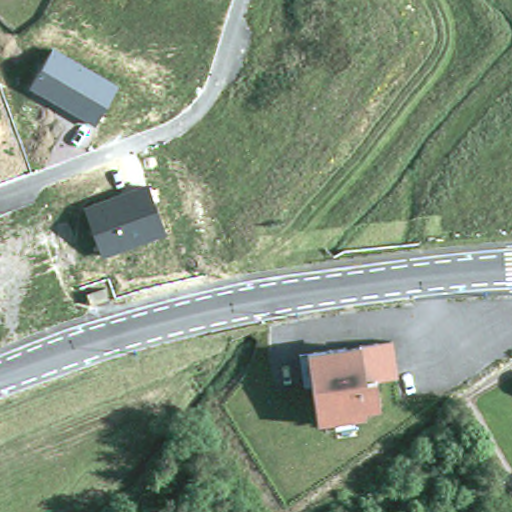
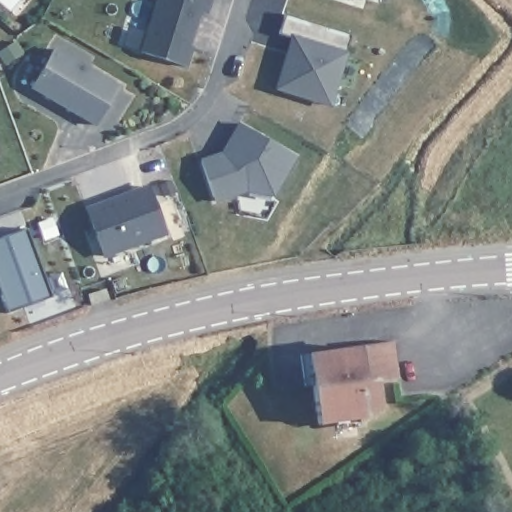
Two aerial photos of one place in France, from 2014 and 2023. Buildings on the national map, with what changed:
new [(192,45),(193,46),(188,66),(142,52),(157,0),(211,0),(207,14),(200,11),(192,45)]
new [(280,34),(285,16),(352,36),(348,52),(332,108),(275,90),(290,37),(280,34)]
unchanged [(118,84),(95,126),(28,88),(52,47),(118,84)]
new [(298,156),(273,198),(248,192),(216,204),(200,160),(222,153),(237,123),(298,156)]
unchanged [(147,183),(167,234),(103,257),(85,206),(147,183)]
new [(52,297),(8,312),(0,289),(0,240),(27,230),(52,297)]
unchanged [(360,349),(395,342),(398,375),(373,382),(375,408),(365,410),(365,416),(318,424),(308,356),(360,349)]

